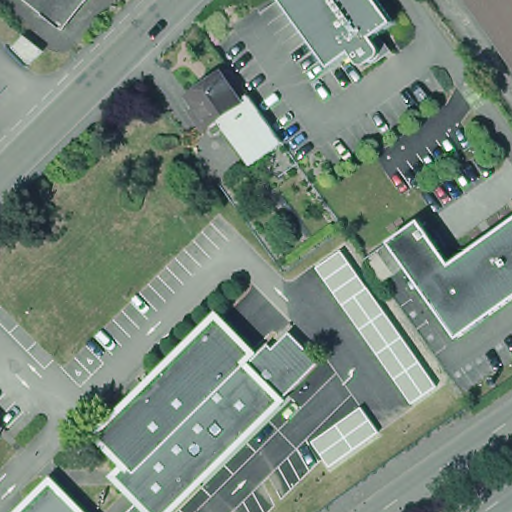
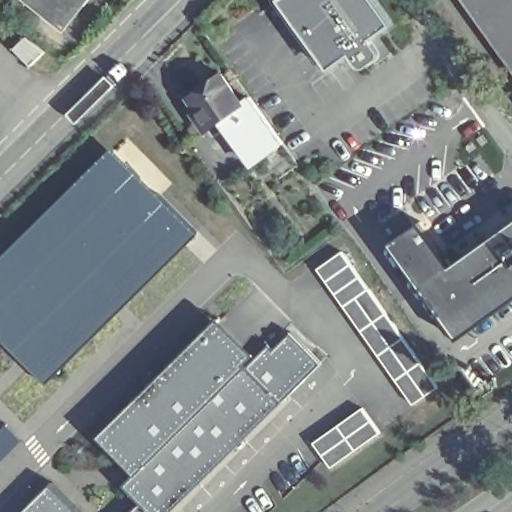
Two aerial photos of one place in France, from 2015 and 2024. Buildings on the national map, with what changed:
unchanged [(24,0),(92,0),(66,33),(24,0)]
unchanged [(373,62),(371,60),(367,63),(364,64),(361,66),(357,66),(354,64),(352,61),(347,53),(326,68),(276,0),(372,0),(389,23),(387,24),(375,33),(382,42),(389,51),(373,62)]
unchanged [(467,0),(512,0),(512,63),(467,0)]
unchanged [(44,52),(32,65),(15,50),(26,37),(44,52)]
unchanged [(194,115),(198,112),(186,96),(217,73),(239,101),(217,117),(207,124),(202,128),(194,115)]
unchanged [(247,95),(280,141),(249,162),(217,117),(239,101),(247,95)]
new [(161,196),(196,232),(42,386),(0,343),(0,250),(108,144),(116,151),(127,136),(173,183),(161,196)]
unchanged [(427,223),(460,269),(512,234),(512,304),(466,337),(399,242),(427,223)]
unchanged [(320,264),(349,242),(457,395),(432,419),(320,264)]
unchanged [(168,512),(165,512),(151,498),(93,440),(214,320),(254,360),(287,394),(168,512)]
unchanged [(254,360),(276,337),(281,342),(297,326),(326,356),(287,394),(254,360)]
new [(381,432),(331,469),(314,442),(363,407),(381,432)]
new [(0,458),(0,427),(5,422),(20,438),(0,458)]
unchanged [(93,512),(20,512),(57,475),(93,512)]
unchanged [(165,512),(137,512),(151,498),(165,512)]

